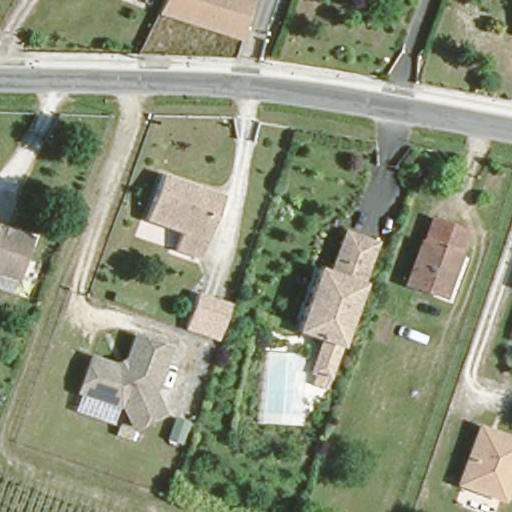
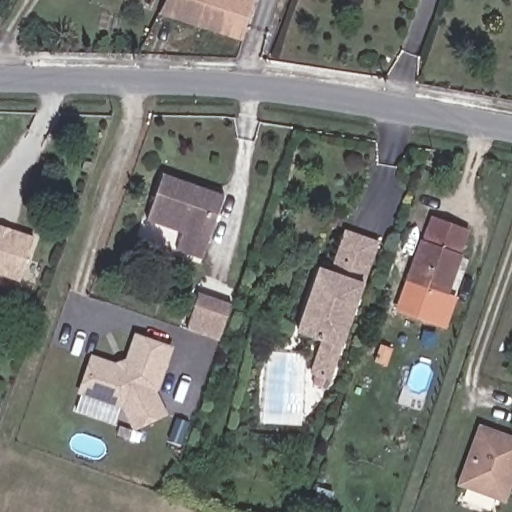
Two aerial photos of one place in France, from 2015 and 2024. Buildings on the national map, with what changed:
unchanged [(206,22),(165,10),(169,0),(251,0),(241,34),(206,22)]
unchanged [(192,256),(172,250),(178,234),(172,232),(154,226),(143,222),(159,177),(170,180),(187,186),(212,194),(217,196),(197,257),(192,256)]
unchanged [(425,237),(435,212),(467,224),(458,249),(461,250),(445,292),(406,277),(422,236),(425,237)]
unchanged [(16,281),(0,275),(0,230),(30,240),(16,281)]
unchanged [(311,378),(309,377),(321,346),(294,336),(303,309),(307,300),(316,274),(328,278),(344,235),(373,245),(376,246),(338,352),(326,383),(322,382),(318,393),(307,390),(311,378)]
new [(446,328),(396,311),(406,277),(445,292),(457,297),(446,328)]
unchanged [(233,305),(221,339),(186,327),(200,291),(233,305)]
unchanged [(151,391),(165,418),(137,433),(135,430),(119,396),(114,400),(95,395),(81,391),(91,360),(105,365),(116,367),(125,363),(134,337),(137,338),(161,347),(170,350),(155,390),(151,391)]
unchanged [(507,500),(456,484),(477,423),(512,434),(512,485),(507,500)]

